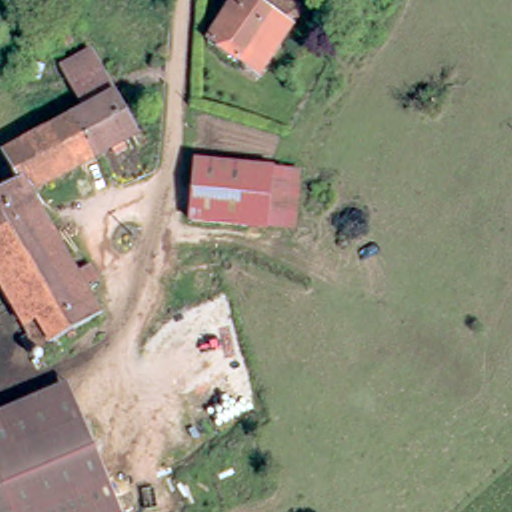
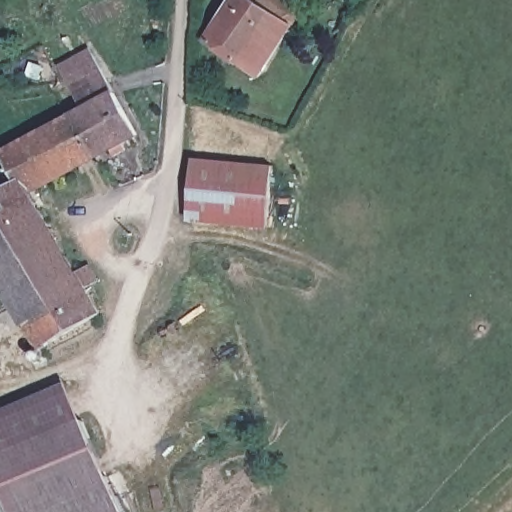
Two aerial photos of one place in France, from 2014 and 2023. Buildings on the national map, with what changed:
unchanged [(236,0),(271,0),(272,0),(297,18),(285,35),(250,85),(201,50),(236,0)]
unchanged [(66,74),(62,67),(92,51),(96,58),(66,74)]
unchanged [(137,132),(97,156),(72,116),(85,110),(68,78),(102,70),(137,132)]
unchanged [(6,154),(72,116),(97,156),(32,194),(25,183),(2,192),(0,188),(0,170),(12,164),(6,154)]
unchanged [(241,222),(226,222),(196,217),(202,155),(276,162),(271,224),(241,222)]
unchanged [(299,164),(295,227),(271,224),(276,162),(299,164)]
unchanged [(25,183),(32,194),(44,214),(0,237),(0,193),(2,192),(25,183)]
unchanged [(0,237),(44,214),(70,258),(11,292),(0,274),(0,237)]
unchanged [(101,313),(37,350),(31,339),(36,336),(11,292),(70,258),(101,313)]
unchanged [(71,390),(86,425),(0,460),(0,416),(27,406),(71,390)]
unchanged [(122,512),(0,512),(0,460),(86,425),(122,512)]

